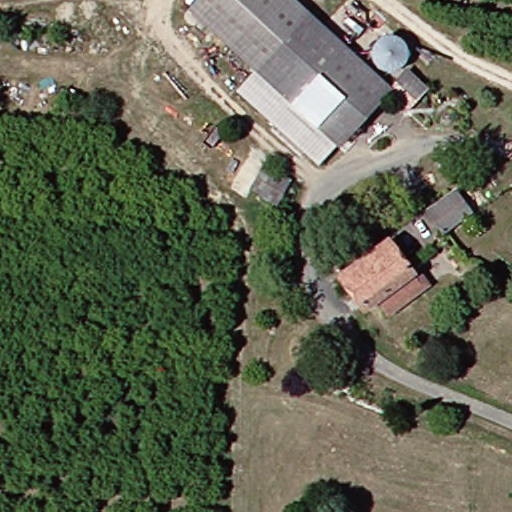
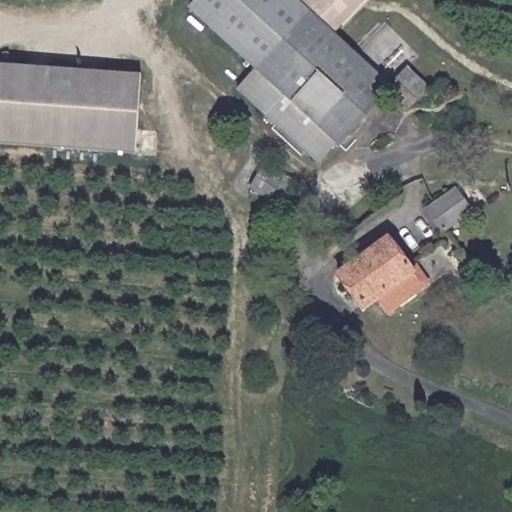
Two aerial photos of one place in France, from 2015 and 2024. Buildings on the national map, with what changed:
unchanged [(266,72),(198,11),(208,0),(300,0),(317,16),(266,72)]
new [(300,0),(368,0),(336,32),(317,16),(300,0)]
unchanged [(332,166),(249,91),(266,72),(317,16),(400,89),(332,166)]
unchanged [(382,50),(383,44),(387,40),(391,36),(396,34),(402,34),(407,35),(412,38),(416,42),(418,47),(419,52),(418,60),(414,64),(410,67),(404,70),(399,71),(394,69),(389,67),(384,62),(382,57),(382,55),(382,50)]
new [(136,156),(0,146),(0,66),(140,76),(136,156)]
unchanged [(437,87),(419,107),(400,89),(417,69),(437,87)]
unchanged [(292,184),(277,210),(245,190),(259,166),(292,184)]
unchanged [(475,213),(449,235),(430,212),(456,190),(475,213)]
unchanged [(384,302),(368,313),(343,278),(392,239),(429,284),(393,312),(384,302)]

